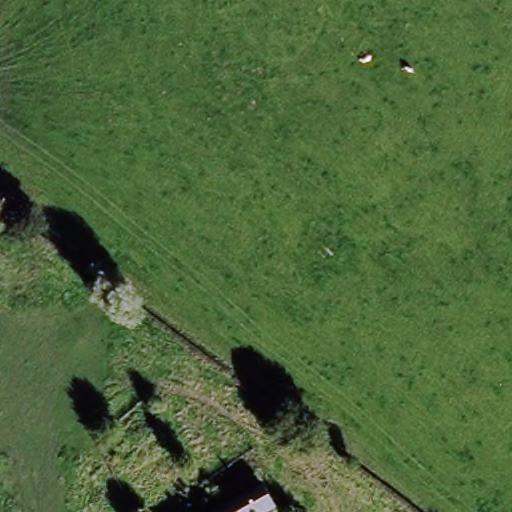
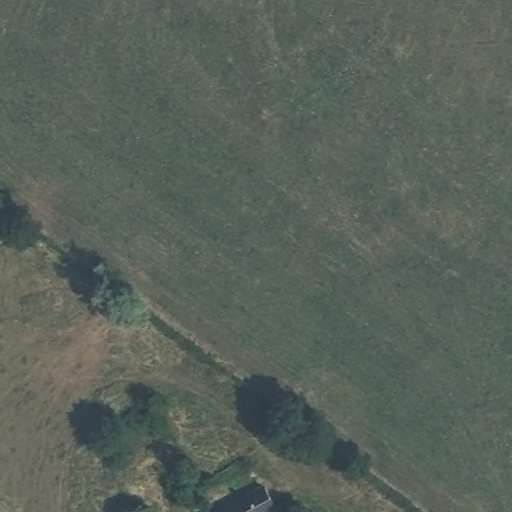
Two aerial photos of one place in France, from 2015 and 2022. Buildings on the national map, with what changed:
unchanged [(265,492),(277,512),(227,512),(265,492)]

